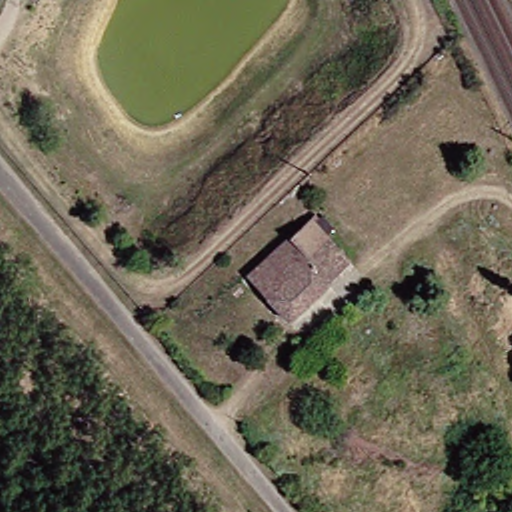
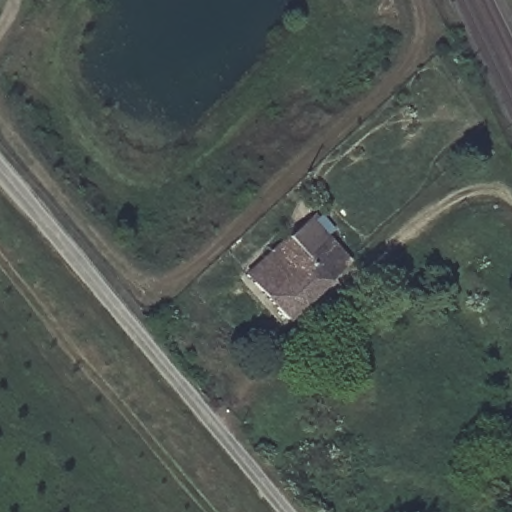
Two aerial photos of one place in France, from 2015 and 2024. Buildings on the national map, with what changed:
unchanged [(340,262),(278,318),(237,275),(296,217),(340,262)]

